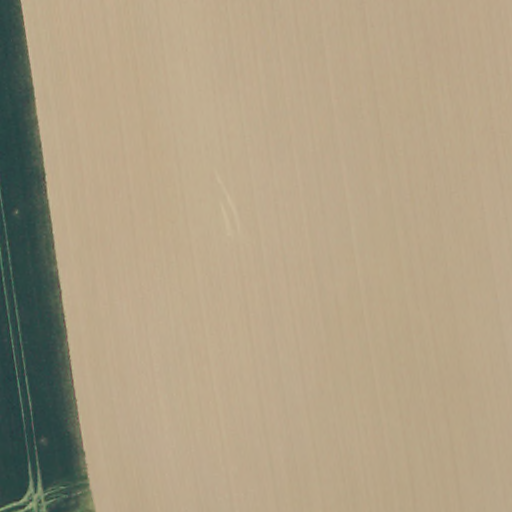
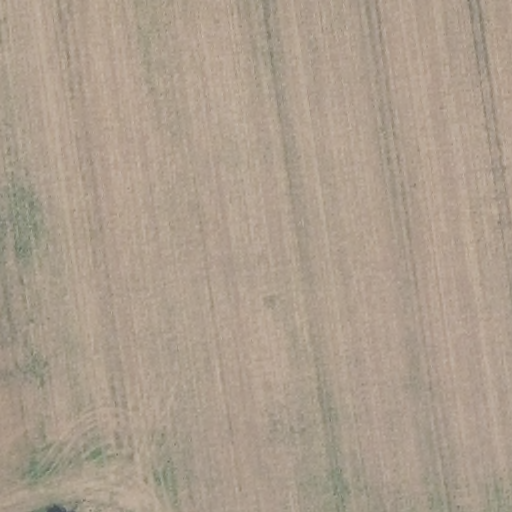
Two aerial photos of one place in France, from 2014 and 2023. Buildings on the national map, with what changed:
[]

